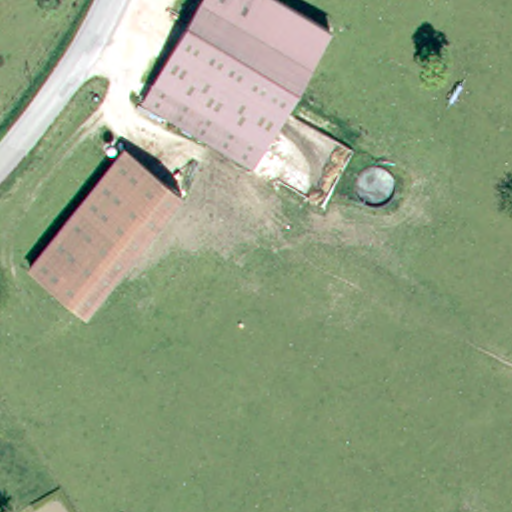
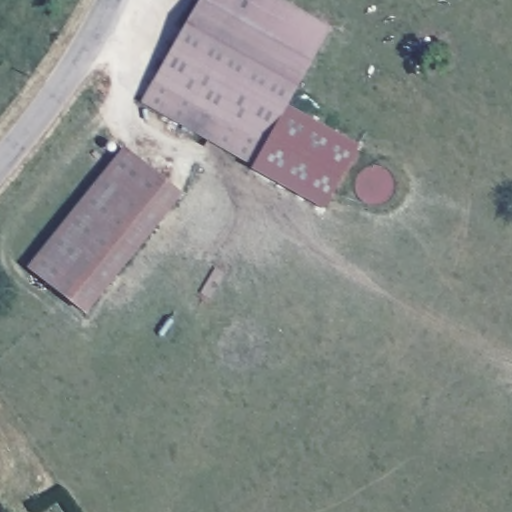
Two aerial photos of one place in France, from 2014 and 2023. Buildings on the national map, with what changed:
unchanged [(199,0),(202,2),(309,63),(251,163),(142,101),(199,0)]
unchanged [(200,0),(282,0),(329,27),(309,63),(202,2),(199,0),(200,0)]
new [(324,211),(253,171),(289,107),(360,147),(324,211)]
unchanged [(123,149),(181,195),(86,312),(29,267),(123,149)]

